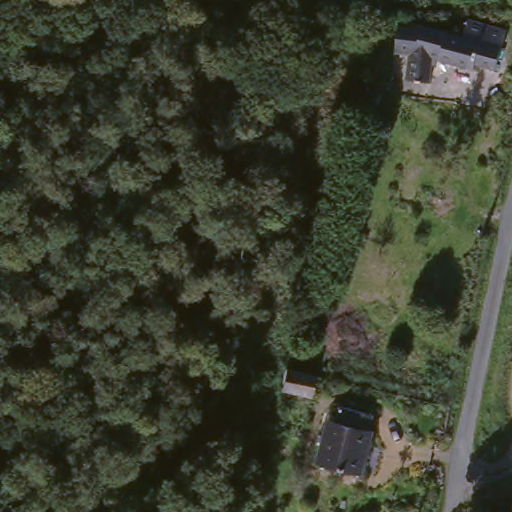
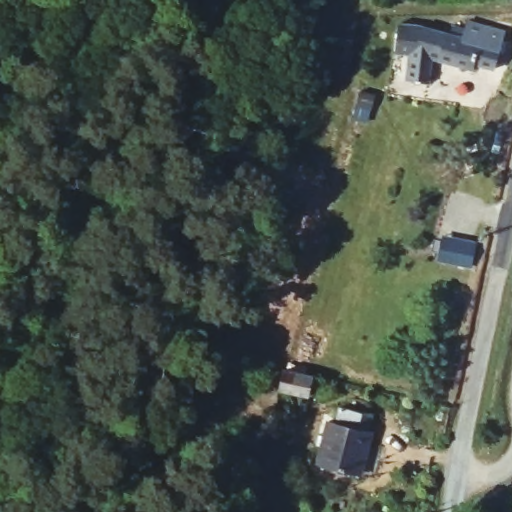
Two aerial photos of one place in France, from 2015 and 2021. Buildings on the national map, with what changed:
unchanged [(463,22),(500,30),(491,71),(471,67),(469,72),(430,64),(423,88),(403,82),(409,58),(396,56),(385,50),(394,22),(402,25),(459,36),(463,22)]
new [(472,268),(456,265),(438,262),(443,237),(460,240),(477,244),(472,268)]
unchanged [(331,398),(313,395),(294,390),(298,372),(316,376),(334,380),(331,398)]
unchanged [(318,422),(329,425),(333,410),(365,417),(353,475),(309,465),(318,422)]

